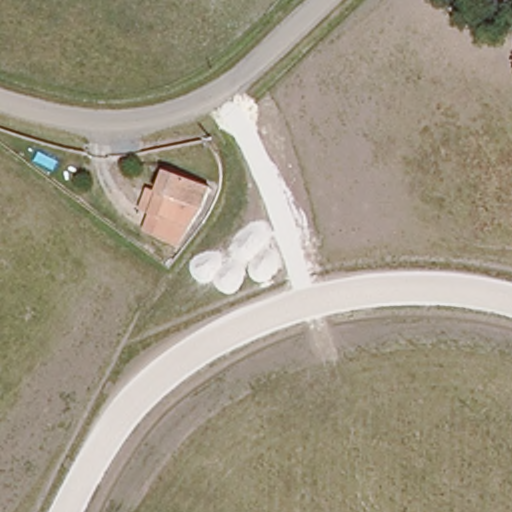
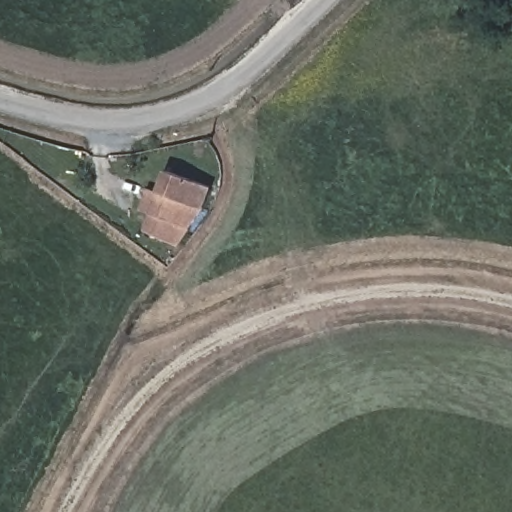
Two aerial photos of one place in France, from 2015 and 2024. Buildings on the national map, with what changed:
unchanged [(200,210),(176,244),(145,230),(166,171),(209,186),(200,210)]

